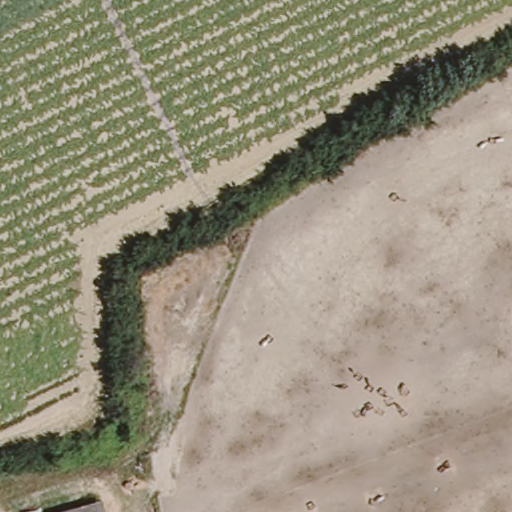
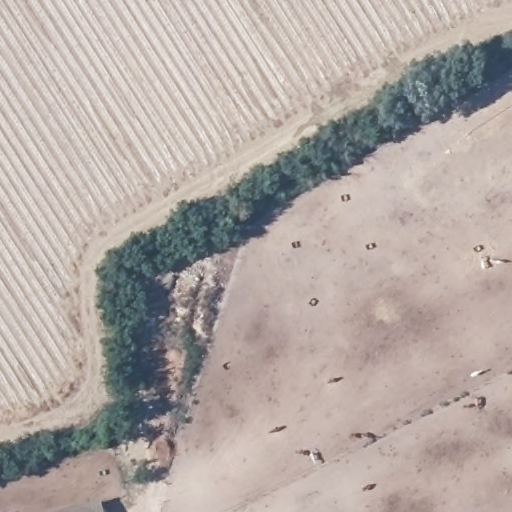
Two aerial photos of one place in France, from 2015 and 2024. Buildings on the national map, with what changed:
unchanged [(107,497),(110,512),(53,512),(107,497)]

